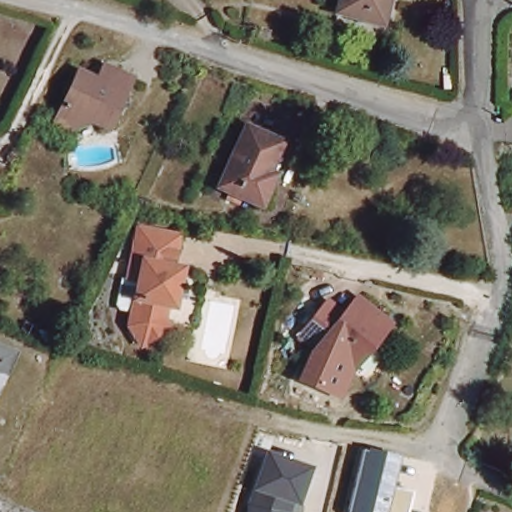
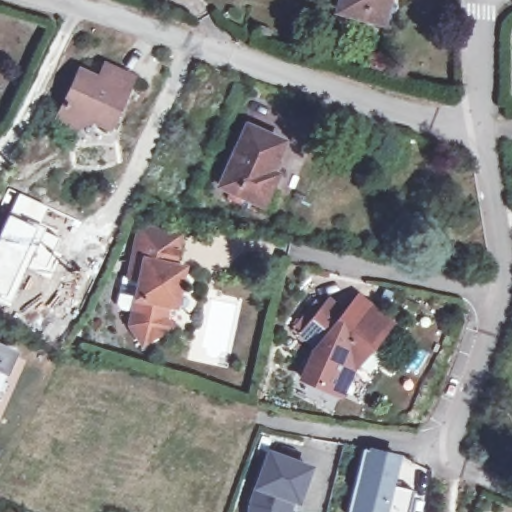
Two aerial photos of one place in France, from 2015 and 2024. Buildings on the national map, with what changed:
unchanged [(340,0),(389,0),(383,22),(337,10),(340,0)]
unchanged [(115,121),(100,115),(80,122),(60,113),(83,65),(103,74),(110,61),(136,73),(115,121)]
unchanged [(285,141),(268,178),(275,182),(265,203),(225,184),(251,126),(285,141)]
new [(25,268),(8,303),(0,300),(0,232),(10,211),(19,192),(48,206),(40,225),(47,229),(42,240),(25,268)]
unchanged [(160,301),(158,315),(163,323),(137,340),(123,320),(132,276),(122,274),(132,223),(173,230),(168,261),(177,262),(175,273),(168,303),(160,301)]
unchanged [(390,319),(352,366),(320,339),(317,344),(298,330),(322,301),(327,295),(345,309),(358,292),(390,319)]
unchanged [(84,323),(82,333),(74,331),(77,322),(84,323)]
unchanged [(7,377),(0,391),(0,343),(17,350),(7,377)]
unchanged [(393,486),(415,493),(410,512),(348,512),(365,448),(400,457),(393,486)]
unchanged [(300,505),(290,503),(290,512),(247,512),(247,505),(252,489),(266,450),(315,467),(300,505)]

